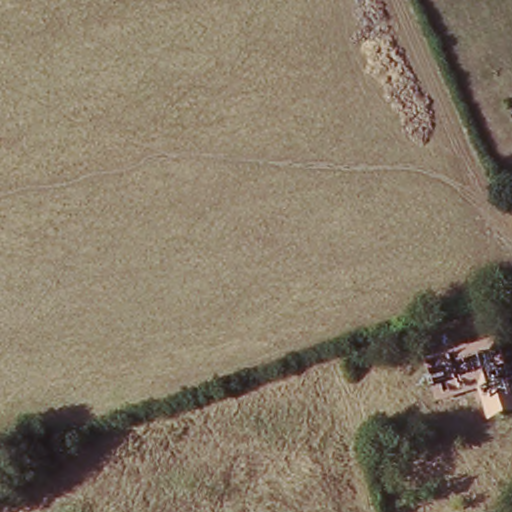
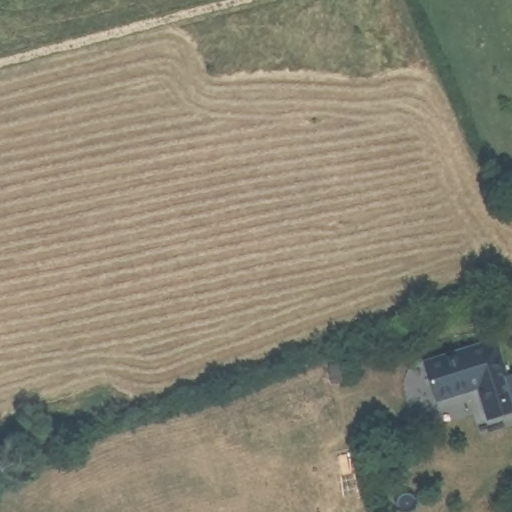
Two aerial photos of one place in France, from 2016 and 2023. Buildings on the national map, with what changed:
unchanged [(481,406),(477,384),(432,394),(425,359),(498,344),(505,377),(512,376),(512,414),(486,420),(481,406)]

